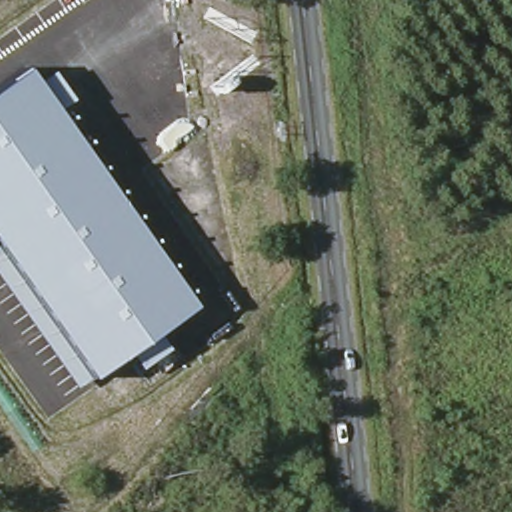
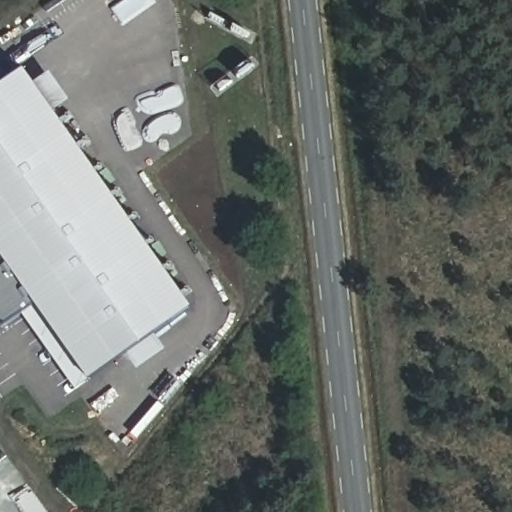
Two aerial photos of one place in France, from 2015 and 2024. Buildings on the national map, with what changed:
unchanged [(167,348),(140,368),(125,355),(89,377),(78,386),(22,313),(0,327),(0,87),(26,70),(36,83),(52,72),(71,99),(55,110),(192,307),(155,332),(167,348)]

